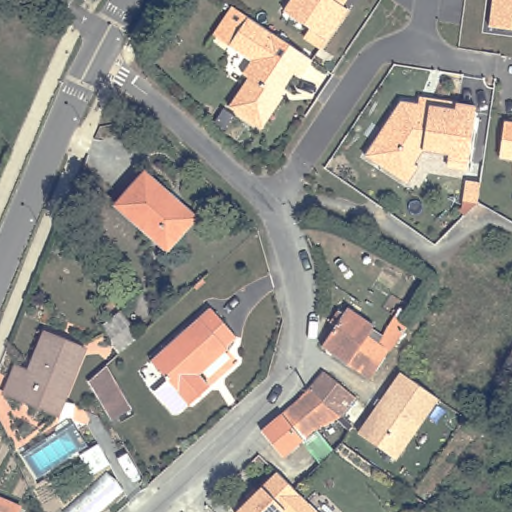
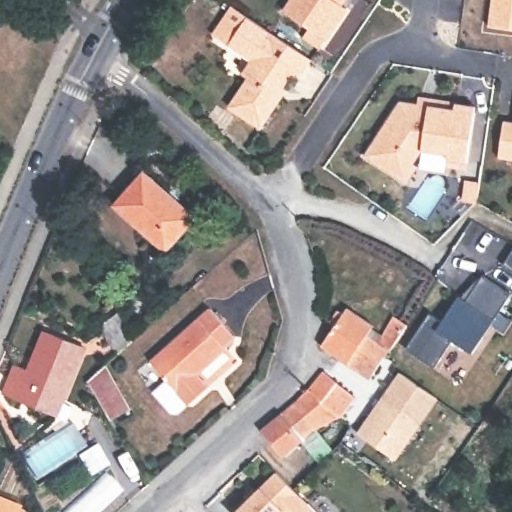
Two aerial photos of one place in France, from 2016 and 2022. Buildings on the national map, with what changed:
unchanged [(325,37),(318,45),(302,35),(307,26),(282,10),(289,0),(343,0),(347,4),(325,37)]
unchanged [(495,0),(512,0),(512,26),(492,24),(495,0)]
unchanged [(255,59),(216,32),(235,5),(273,30),(315,59),(303,77),(296,74),(281,96),(285,99),(265,127),(233,106),(252,76),(245,73),(255,59)]
unchanged [(21,27),(31,14),(51,31),(45,40),(29,27),(26,31),(21,27)]
unchanged [(454,154),(455,150),(429,145),(420,160),(424,162),(413,179),(370,150),(406,96),(425,99),(425,105),(435,106),(435,101),(462,105),(480,108),(478,118),(472,157),(454,154)]
unchanged [(499,149),(502,129),(511,120),(512,120),(512,159),(506,159),(499,149)]
unchanged [(157,234),(120,201),(149,168),(200,213),(176,241),(171,246),(157,234)]
new [(430,315),(442,322),(458,297),(466,302),(483,276),(511,295),(473,355),(453,341),(435,370),(406,351),(430,315)]
demolished [(436,361),(470,308),(466,305),(473,292),(508,313),(468,380),(436,361)]
unchanged [(333,318),(342,306),(348,310),(352,304),(377,320),(376,323),(386,330),(398,311),(411,320),(395,347),(392,346),(373,375),(338,351),(326,342),(338,323),(333,318)]
unchanged [(171,375),(156,358),(215,305),(240,332),(230,341),(231,343),(201,371),(211,383),(194,400),(191,397),(181,406),(176,405),(159,386),(171,375)]
unchanged [(118,353),(107,338),(102,326),(120,311),(137,335),(118,353)]
unchanged [(53,407),(9,390),(20,360),(35,366),(51,327),(87,342),(67,393),(60,410),(53,407)]
unchanged [(512,354),(512,373),(503,367),(512,354)]
unchanged [(302,398),(312,385),(326,367),(372,402),(358,421),(346,412),(323,422),(289,452),(266,427),(302,398)]
unchanged [(438,398),(397,458),(360,433),(400,372),(438,398)]
unchanged [(95,383),(106,375),(127,409),(116,416),(95,383)]
unchanged [(78,455),(96,443),(109,465),(91,476),(78,455)]
unchanged [(236,510),(278,468),(295,485),(269,512),(238,512),(236,510)]
unchanged [(322,512),(269,512),(295,485),(322,512)]
unchanged [(19,507),(17,512),(0,512),(0,500),(19,507)]

